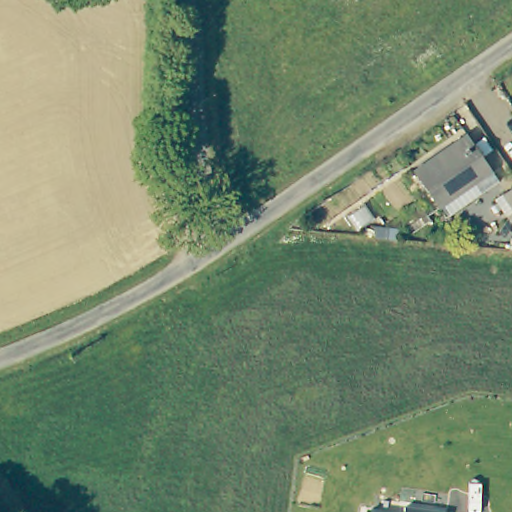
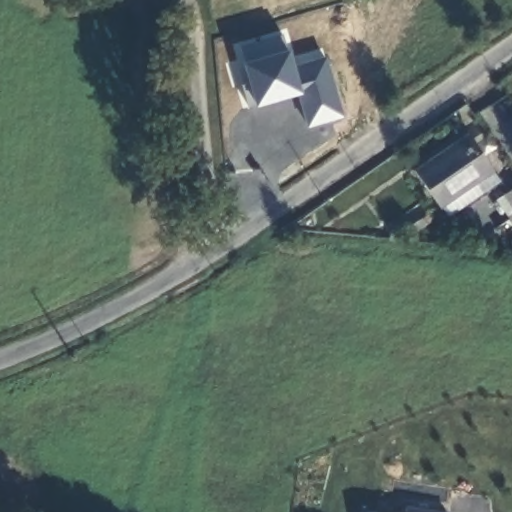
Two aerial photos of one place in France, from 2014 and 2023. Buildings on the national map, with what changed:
new [(282,34),(292,66),(324,57),(341,115),(307,125),(292,75),(276,80),(278,87),(268,90),(271,100),(248,106),(241,84),(249,81),(239,46),(282,34)]
unchanged [(448,216),(441,205),(439,207),(414,170),(468,132),(493,170),(480,179),(487,190),(448,216)]
unchanged [(496,200),(512,188),(512,222),(496,200)]
unchanged [(406,507),(445,512),(405,512),(406,507)]

